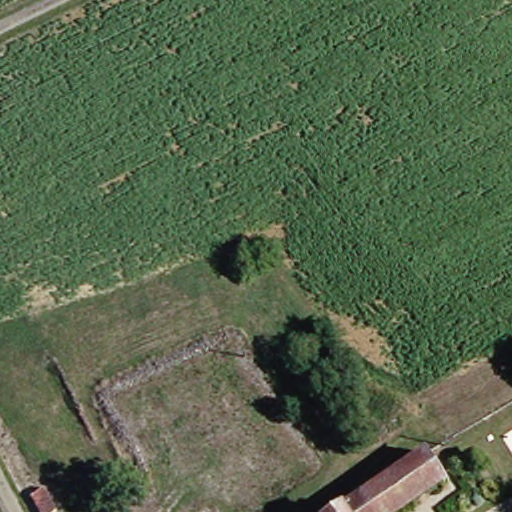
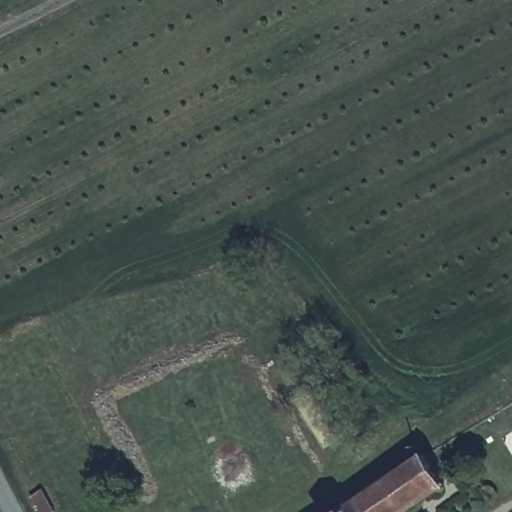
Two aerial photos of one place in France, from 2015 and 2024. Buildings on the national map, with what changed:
unchanged [(330,505),(334,500),(342,499),(347,503),(378,483),(422,457),(441,490),(406,512),(330,512),(330,505)]

